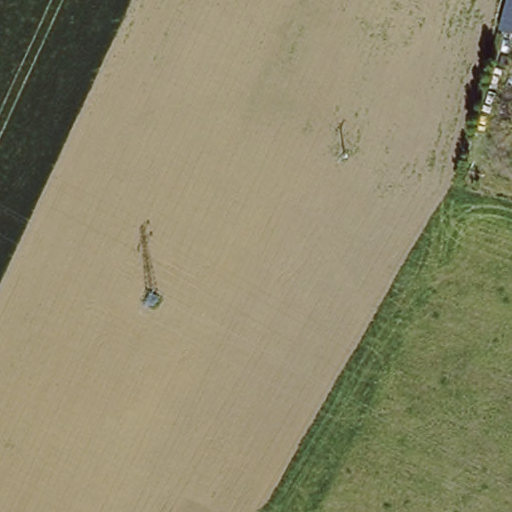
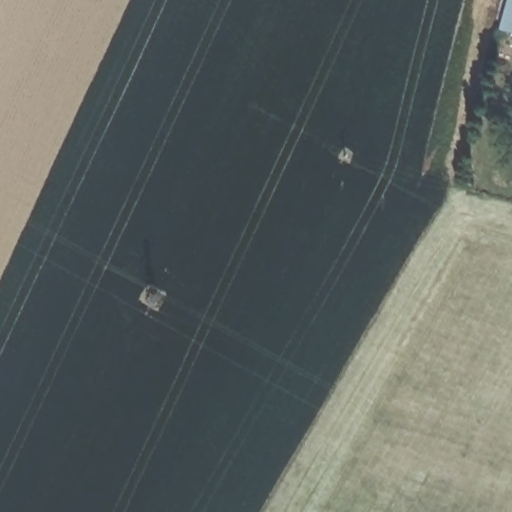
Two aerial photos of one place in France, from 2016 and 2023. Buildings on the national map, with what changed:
[]

